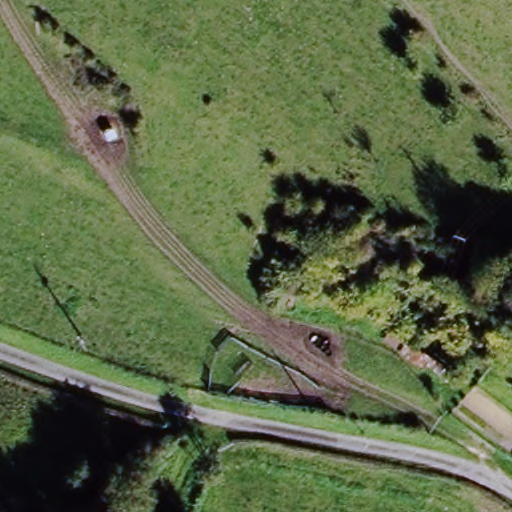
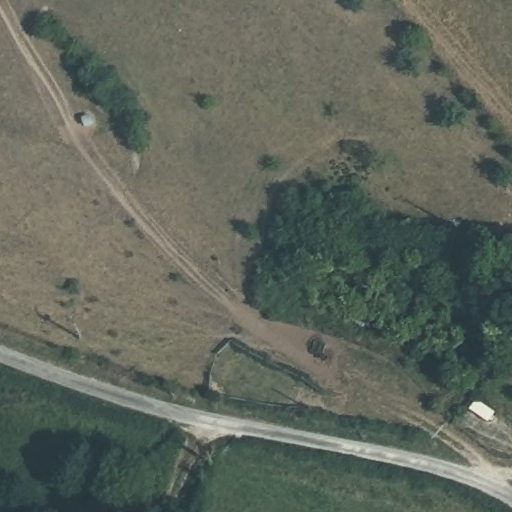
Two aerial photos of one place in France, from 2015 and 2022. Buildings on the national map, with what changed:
[]

